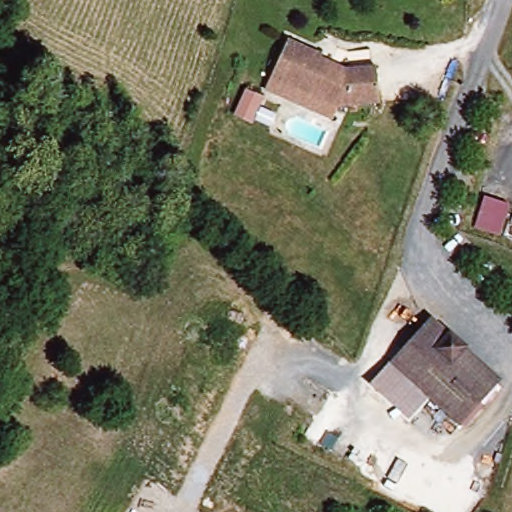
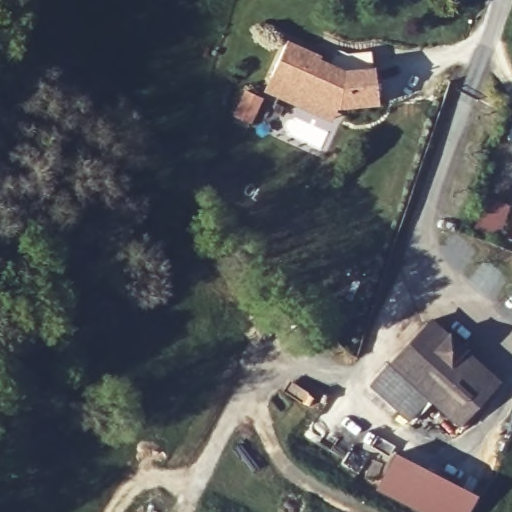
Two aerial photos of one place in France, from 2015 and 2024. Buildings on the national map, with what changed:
unchanged [(380,66),(386,104),(345,112),(333,108),(330,119),(266,89),(288,39),(325,57),(326,61),(335,66),(380,66)]
new [(484,198),(507,205),(498,236),(475,229),(484,198)]
unchanged [(427,320),(446,336),(452,330),(467,343),(463,350),(500,380),(465,423),(432,396),(391,363),(427,320)]
unchanged [(432,396),(412,418),(372,386),(391,363),(432,396)]
new [(477,495),(469,512),(419,512),(376,488),(393,451),(477,495)]

